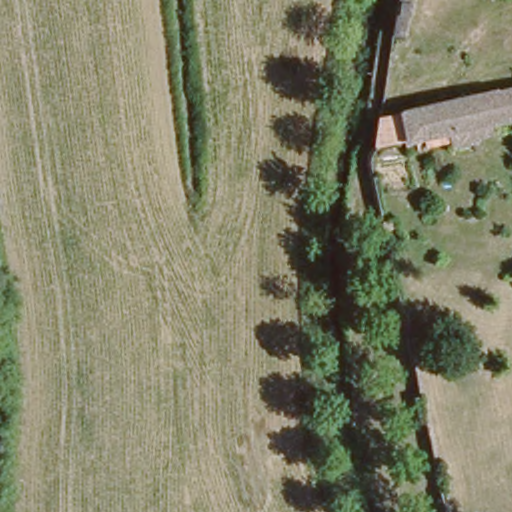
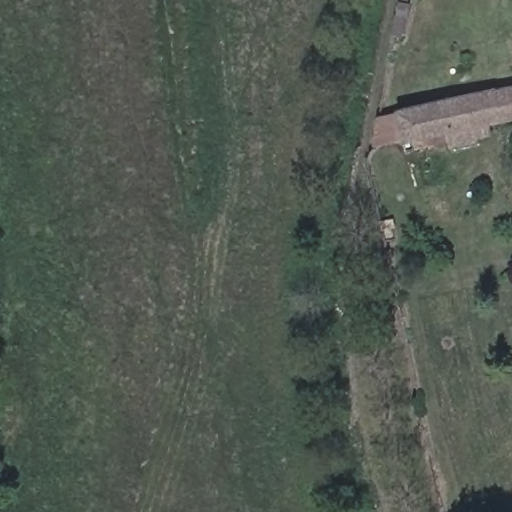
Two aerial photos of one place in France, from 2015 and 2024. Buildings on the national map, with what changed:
unchanged [(405,38),(399,38),(404,0),(412,0),(405,38)]
unchanged [(379,113),(399,109),(512,86),(512,115),(474,122),(477,137),(449,144),(448,130),(426,136),(426,142),(416,144),(412,135),(402,137),(374,143),(379,113)]

